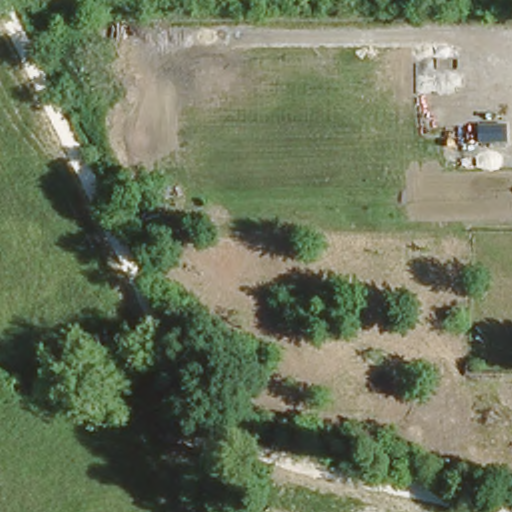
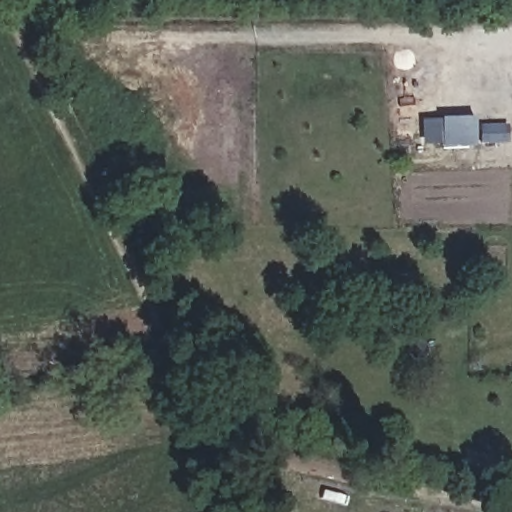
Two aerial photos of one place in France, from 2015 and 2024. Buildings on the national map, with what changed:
new [(475,126),(508,125),(508,143),(423,146),(422,120),(475,118),(475,126)]

